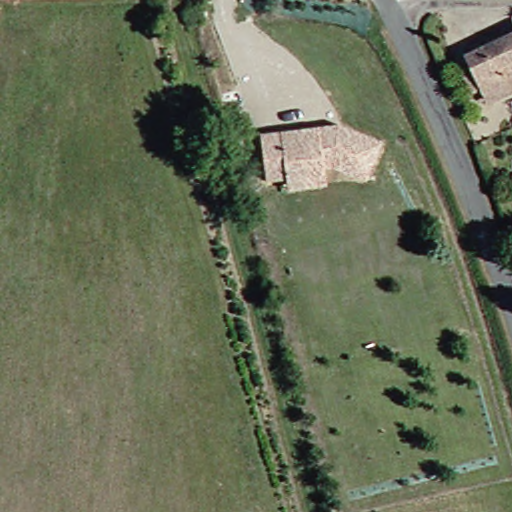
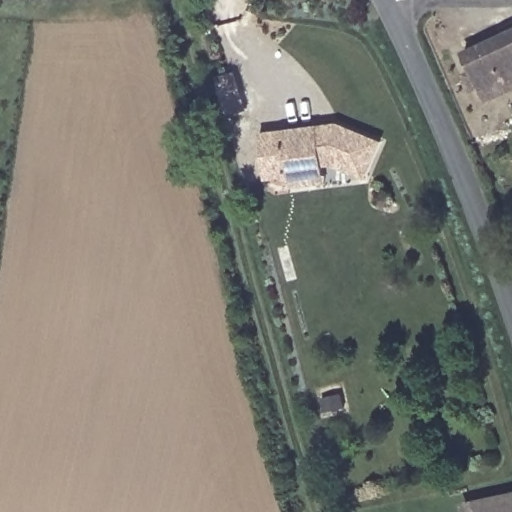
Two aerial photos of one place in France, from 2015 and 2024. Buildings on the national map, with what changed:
unchanged [(512,21),(512,83),(484,92),(468,50),(451,54),(445,39),(512,21)]
unchanged [(292,185),(290,173),(270,176),(265,130),(342,120),(385,137),(370,174),(335,161),(326,162),(329,180),(292,185)]
new [(460,505),(512,494),(512,512),(462,512),(460,505)]

